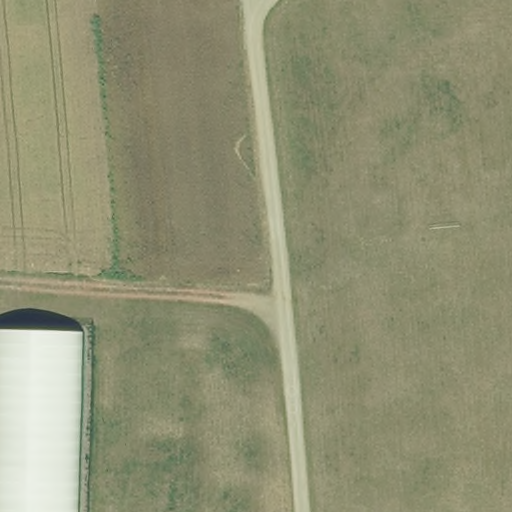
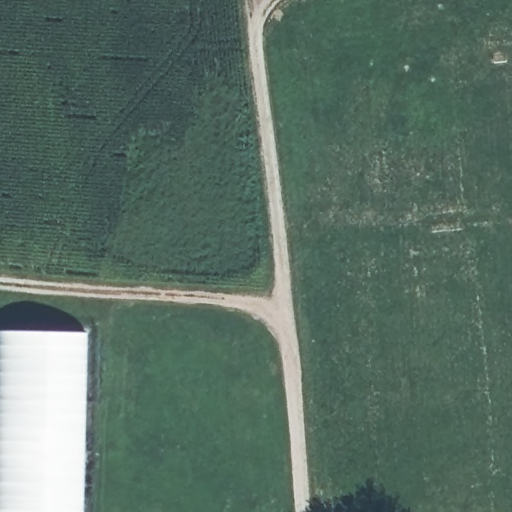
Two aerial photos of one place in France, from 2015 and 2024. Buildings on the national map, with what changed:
unchanged [(0,512),(0,326),(83,331),(81,512),(0,512)]

